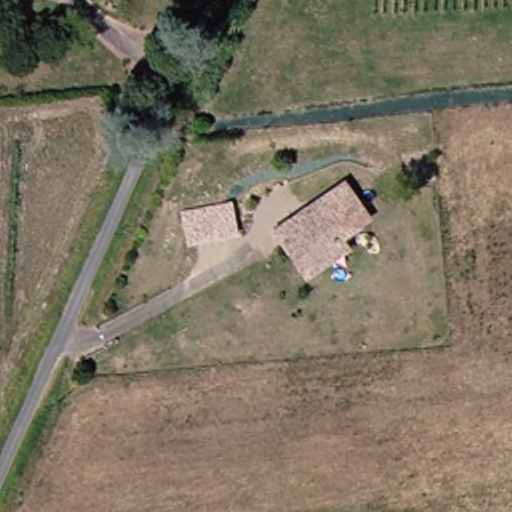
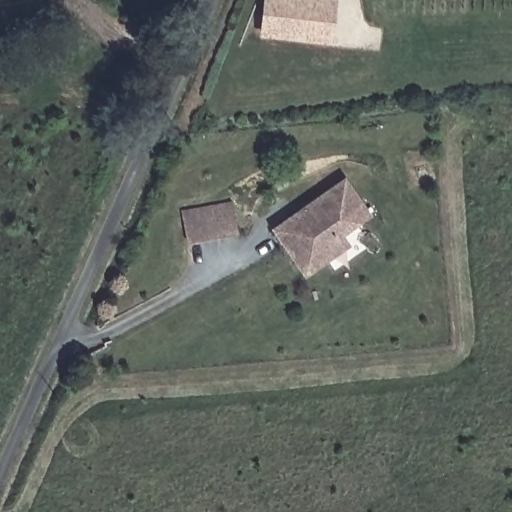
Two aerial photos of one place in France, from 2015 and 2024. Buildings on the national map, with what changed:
new [(259,37),(263,0),(337,0),(333,45),(259,37)]
unchanged [(332,257),(308,276),(275,230),(348,179),(373,214),(343,234),(350,245),(332,257)]
new [(187,244),(181,211),(232,201),(239,234),(187,244)]

